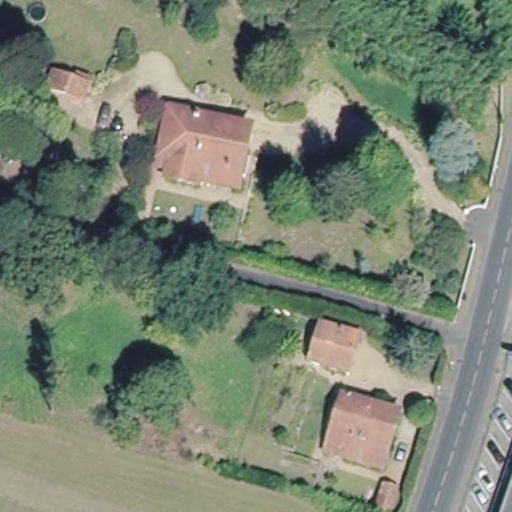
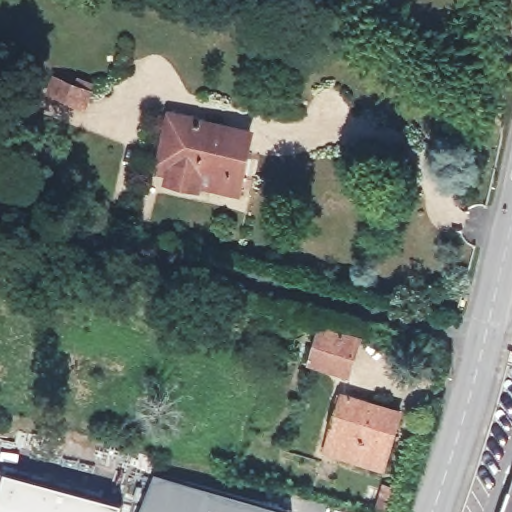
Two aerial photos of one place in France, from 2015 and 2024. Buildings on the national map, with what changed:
unchanged [(236,187),(196,180),(192,186),(168,178),(169,171),(159,167),(172,113),(251,129),(236,187)]
unchanged [(363,335),(354,377),(313,368),(327,324),(363,335)]
unchanged [(452,347),(431,343),(433,330),(456,335),(452,347)]
unchanged [(380,470),(322,455),(340,389),(396,403),(380,470)]
new [(7,472),(125,503),(122,512),(0,512),(0,498),(7,472)]
new [(157,473),(294,512),(141,512),(157,473)]

